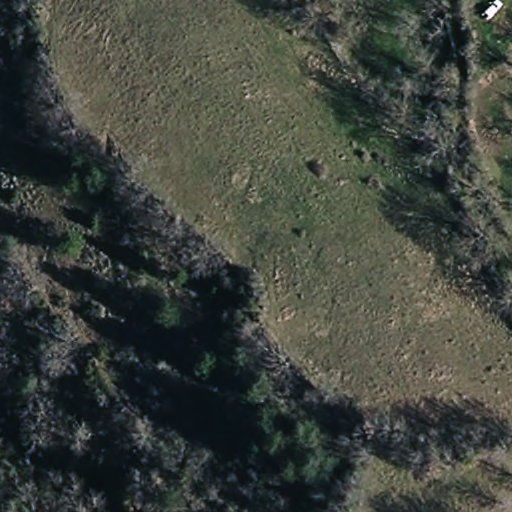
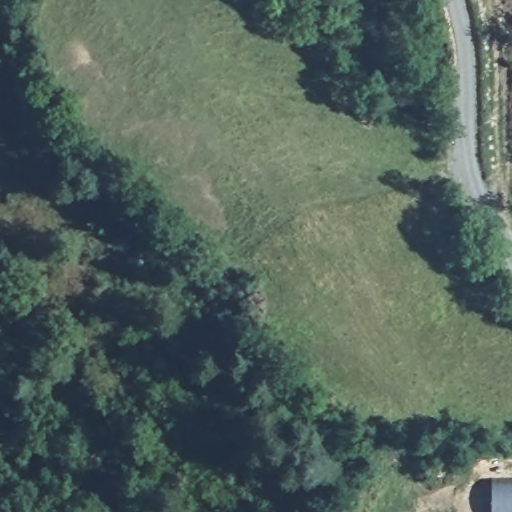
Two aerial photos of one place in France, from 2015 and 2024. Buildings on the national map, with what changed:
new [(512,477),(512,512),(492,512),(491,477),(512,477)]

